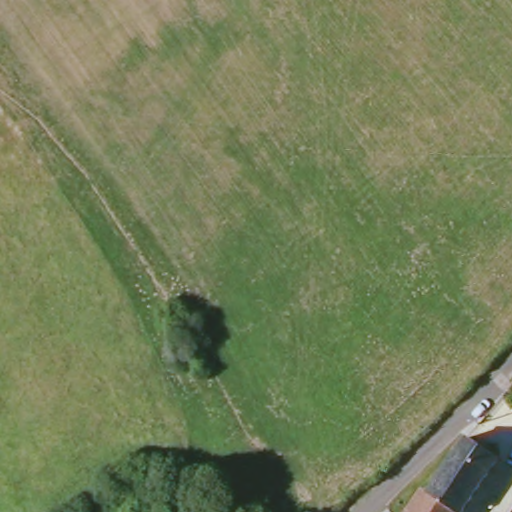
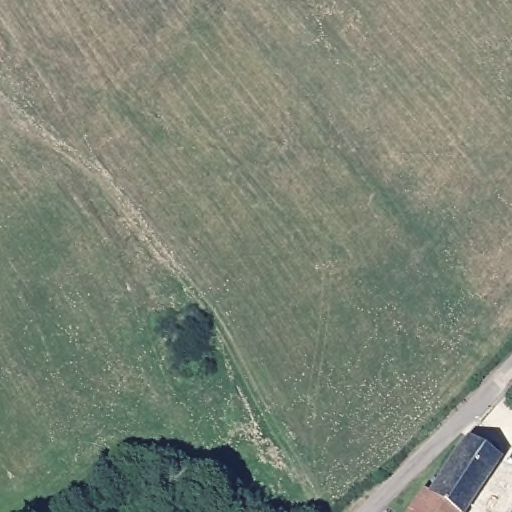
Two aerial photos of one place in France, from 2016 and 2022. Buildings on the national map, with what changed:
unchanged [(492,459),(455,512),(398,512),(414,490),(419,494),(448,452),(460,437),(492,459)]

